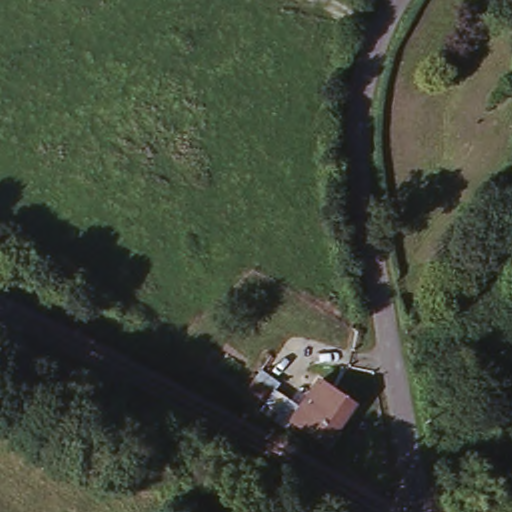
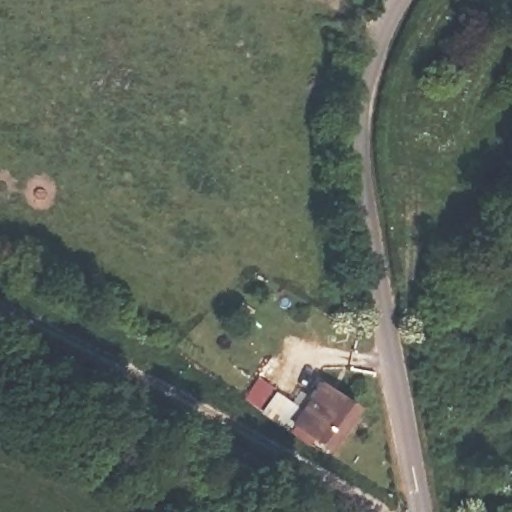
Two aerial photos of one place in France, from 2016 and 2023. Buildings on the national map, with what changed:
unchanged [(312,378),(351,406),(323,447),(284,420),(312,378)]

